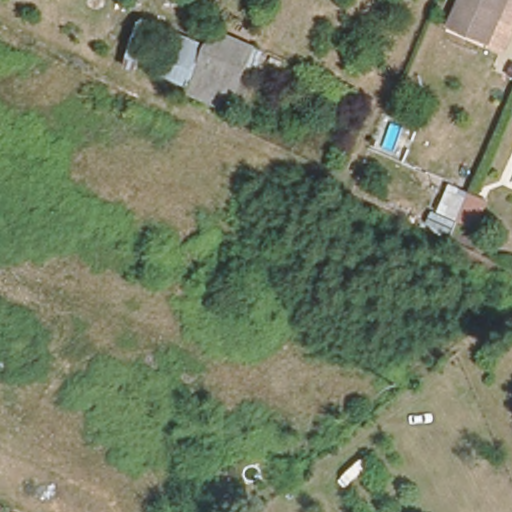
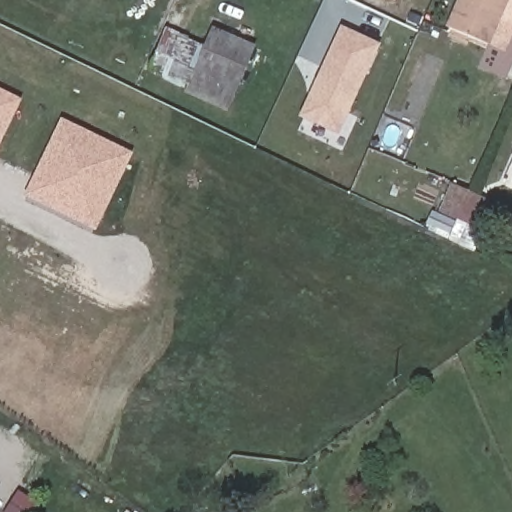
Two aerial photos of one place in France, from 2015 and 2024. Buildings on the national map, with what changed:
unchanged [(131,2),(126,0),(132,0),(131,2)]
new [(395,2),(390,0),(395,0),(395,2)]
unchanged [(484,39),(442,23),(451,0),(499,0),(484,39)]
unchanged [(499,0),(512,0),(512,44),(510,51),(484,39),(499,0)]
unchanged [(197,40),(180,81),(141,64),(159,23),(197,40)]
new [(338,135),(299,117),(342,26),(381,44),(338,135)]
unchanged [(208,44),(233,35),(285,57),(278,78),(259,69),(239,113),(196,100),(194,90),(180,81),(197,40),(208,44)]
new [(0,89),(22,99),(0,145),(0,89)]
new [(96,231),(24,197),(61,119),(134,153),(96,231)]
unchanged [(490,204),(476,233),(456,223),(469,194),(490,204)]

